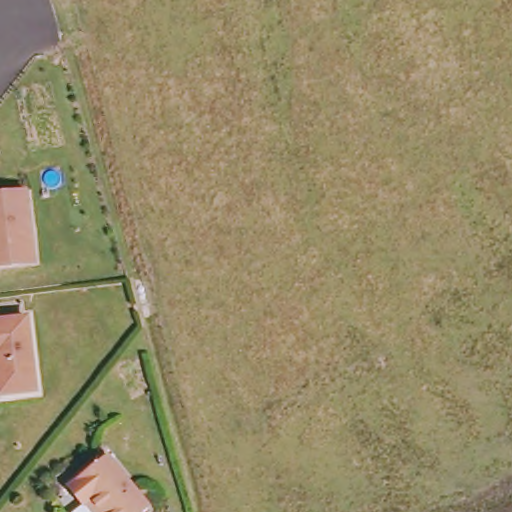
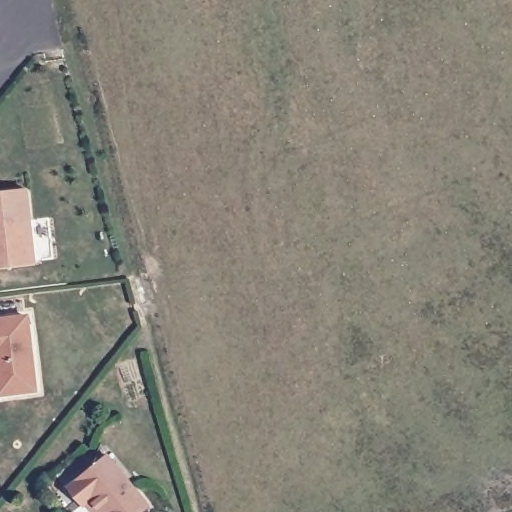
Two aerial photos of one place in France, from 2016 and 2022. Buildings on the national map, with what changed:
unchanged [(40,261),(0,266),(0,192),(34,188),(40,261)]
unchanged [(38,387),(1,392),(0,379),(0,356),(0,354),(0,319),(29,315),(38,387)]
unchanged [(70,488),(108,457),(151,508),(146,512),(89,512),(83,505),(70,488)]

